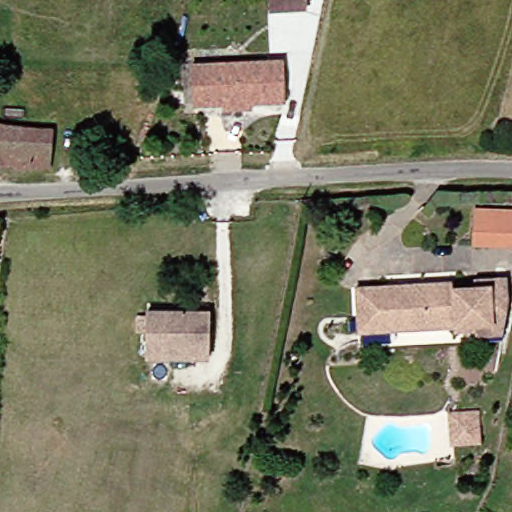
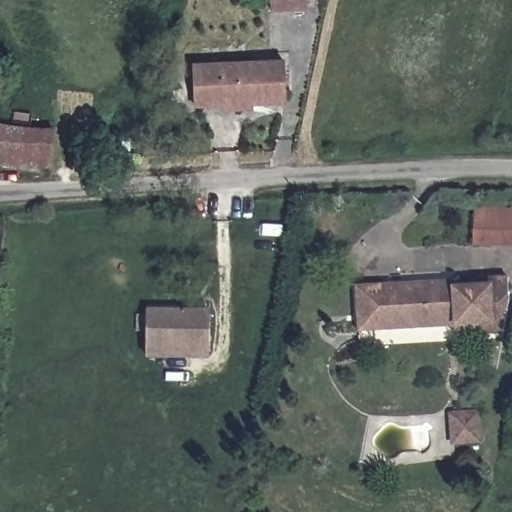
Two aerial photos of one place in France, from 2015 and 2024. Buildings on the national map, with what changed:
unchanged [(277,13),(277,0),(311,0),(311,12),(277,13)]
unchanged [(243,103),(243,109),(198,109),(198,66),(287,66),(286,101),(243,103)]
unchanged [(58,129),(56,166),(1,162),(2,126),(58,129)]
unchanged [(474,208),(512,209),(512,248),(473,247),(474,208)]
unchanged [(484,332),(462,333),(461,328),(363,334),(360,286),(459,280),(460,291),(481,289),(481,282),(496,281),(512,280),(512,325),(510,336),(484,337),(484,332)]
unchanged [(210,317),(211,360),(147,360),(147,310),(195,310),(195,317),(210,317)]
unchanged [(478,449),(451,450),(449,420),(477,419),(478,449)]

